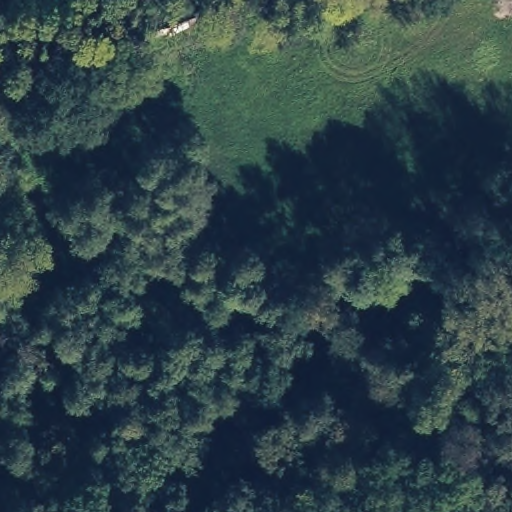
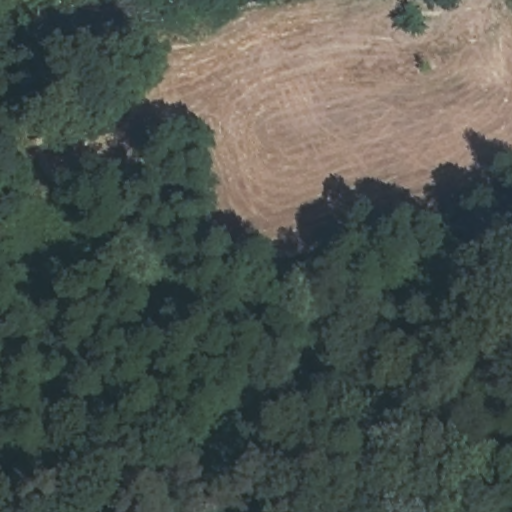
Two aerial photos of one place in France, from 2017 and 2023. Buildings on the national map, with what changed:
[]

